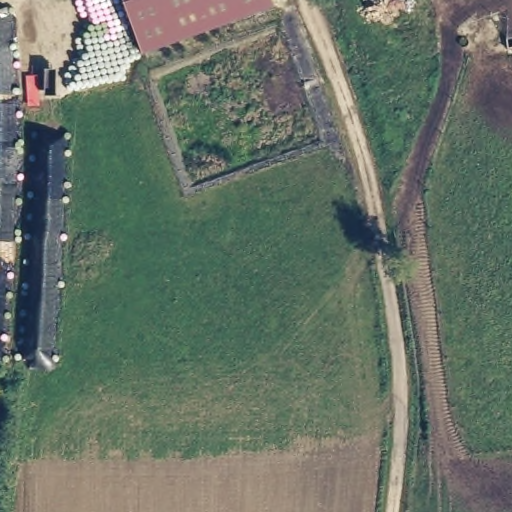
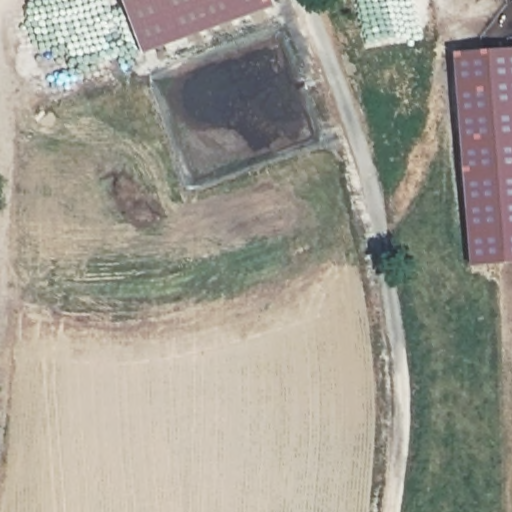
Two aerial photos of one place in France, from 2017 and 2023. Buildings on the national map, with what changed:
unchanged [(275,4),(141,52),(123,0),(273,0),(275,4)]
new [(475,263),(449,56),(512,48),(512,259),(475,263)]

